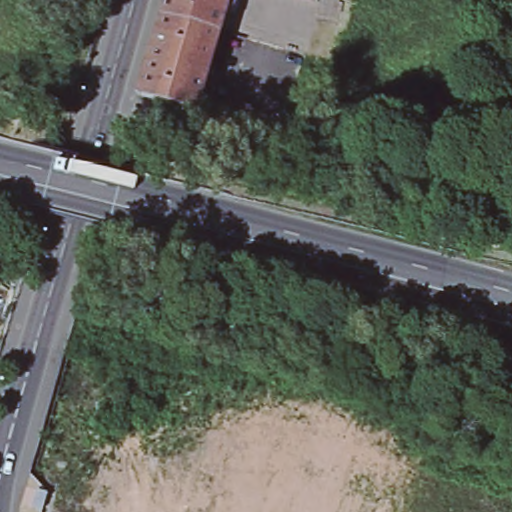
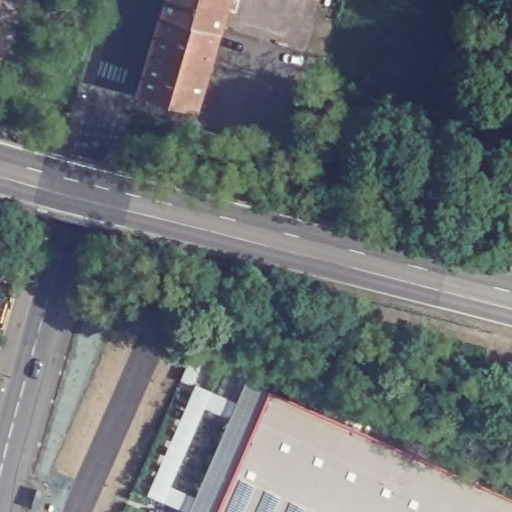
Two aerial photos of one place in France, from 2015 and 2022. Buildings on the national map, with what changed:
unchanged [(160,5),(162,0),(225,0),(219,21),(160,5)]
unchanged [(311,0),(316,0),(315,1),(311,0)]
unchanged [(219,22),(195,104),(136,87),(160,6),(219,22)]
new [(280,48),(281,46),(260,40),(265,11),(287,17),(309,23),(300,55),(287,92),(246,80),(259,41),(280,48)]
new [(147,493),(195,384),(237,402),(247,380),(272,390),(512,497),(512,512),(186,512),(147,493)]

